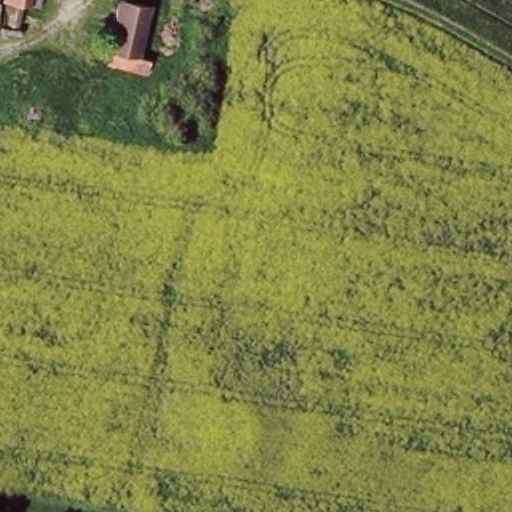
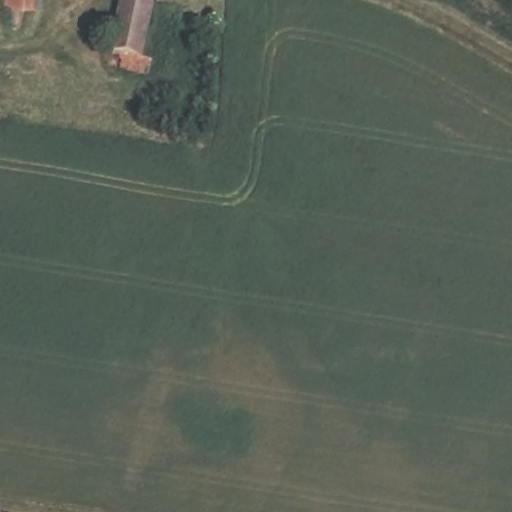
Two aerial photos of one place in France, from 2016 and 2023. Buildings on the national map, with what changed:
unchanged [(36,9),(2,2),(2,0),(37,0),(36,9)]
unchanged [(108,53),(116,0),(127,0),(154,2),(144,56),(154,58),(153,75),(107,68),(108,53)]

